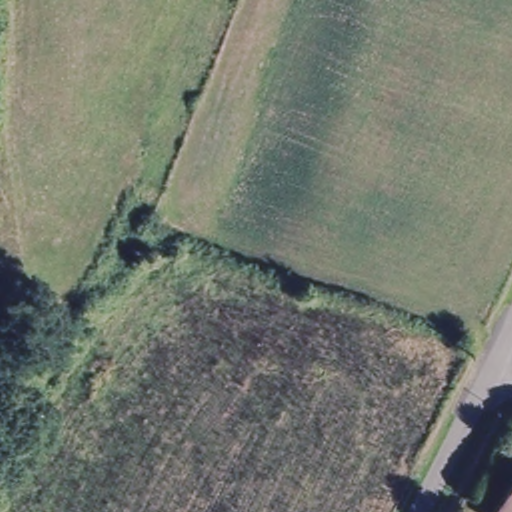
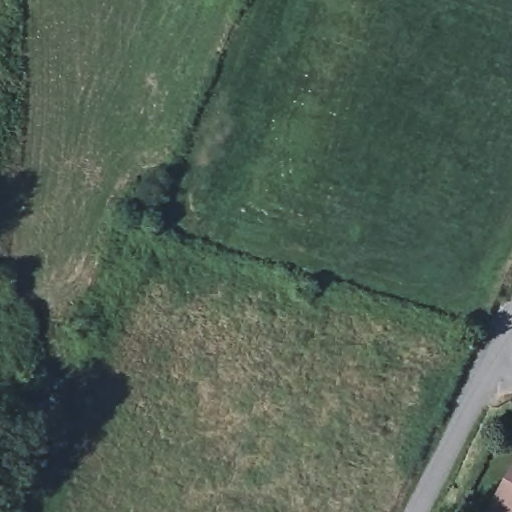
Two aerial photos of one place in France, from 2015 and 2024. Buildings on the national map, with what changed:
unchanged [(493,511),(512,475),(512,512),(495,512),(493,511)]

